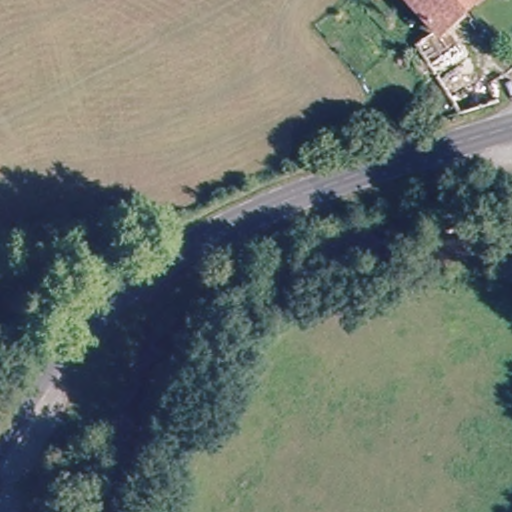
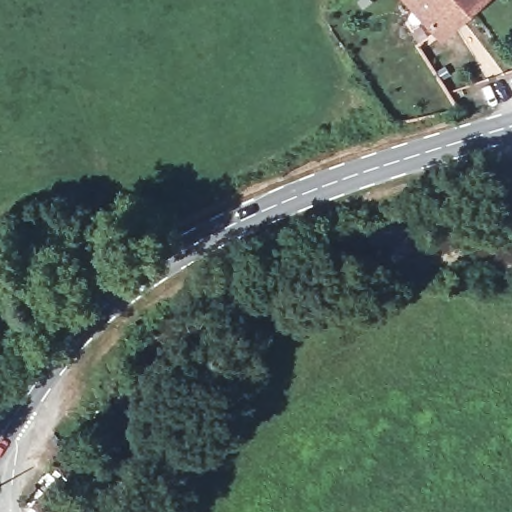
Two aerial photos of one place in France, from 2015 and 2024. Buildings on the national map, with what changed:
unchanged [(440,37),(402,0),(449,0),(463,14),(446,32),(440,37)]
unchanged [(449,0),(478,0),(463,14),(449,0)]
unchanged [(419,59),(440,37),(446,32),(505,107),(466,118),(419,59)]

